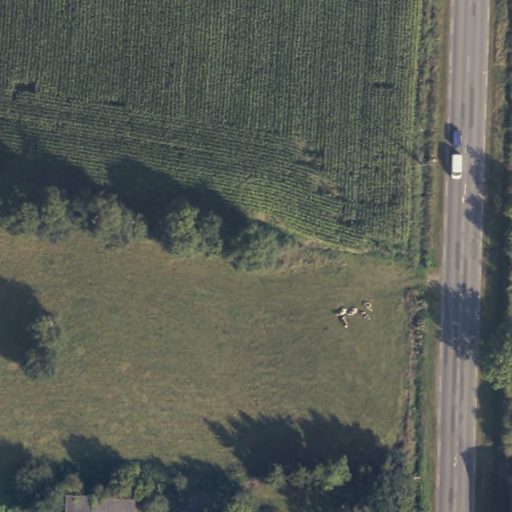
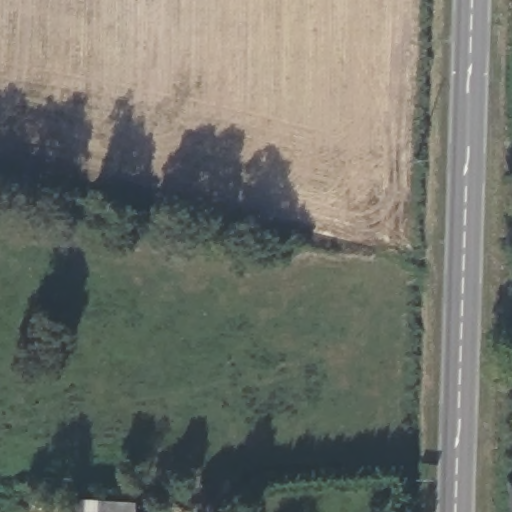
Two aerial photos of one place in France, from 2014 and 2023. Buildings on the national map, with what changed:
unchanged [(512,476),(512,489),(511,476),(512,476)]
unchanged [(136,510),(136,512),(71,512),(71,508),(136,510)]

